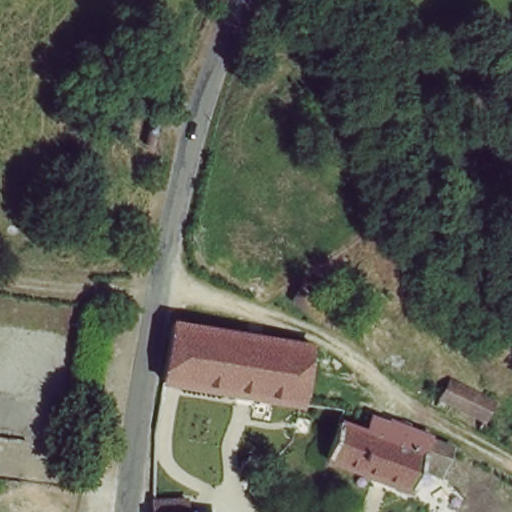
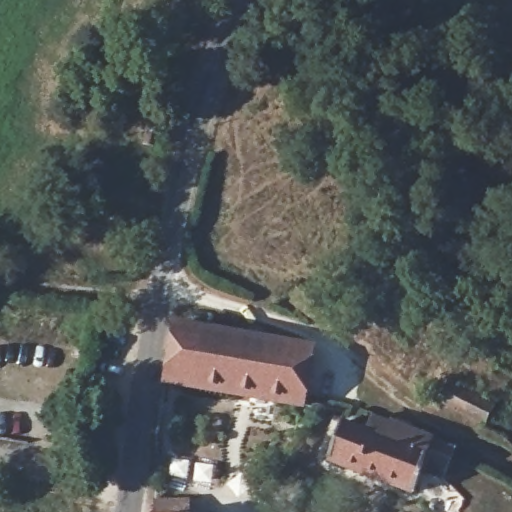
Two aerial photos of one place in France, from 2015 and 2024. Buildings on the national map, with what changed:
unchanged [(296,305),(306,287),(329,300),(318,318),(296,305)]
unchanged [(295,410),(158,392),(170,331),(304,350),(295,410)]
unchanged [(304,350),(325,354),(326,355),(318,413),(295,410),(304,350)]
unchanged [(469,420),(473,411),(437,392),(444,380),(490,405),(481,425),(469,420)]
unchanged [(444,476),(424,468),(412,490),(327,459),(344,424),(368,435),(378,413),(459,447),(444,476)]
unchanged [(159,503),(184,502),(185,512),(160,512),(159,503)]

